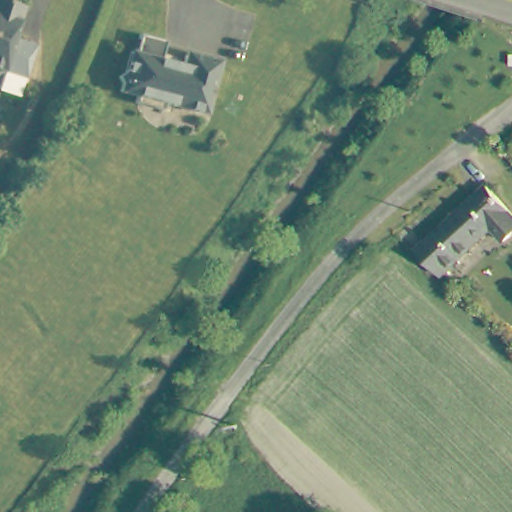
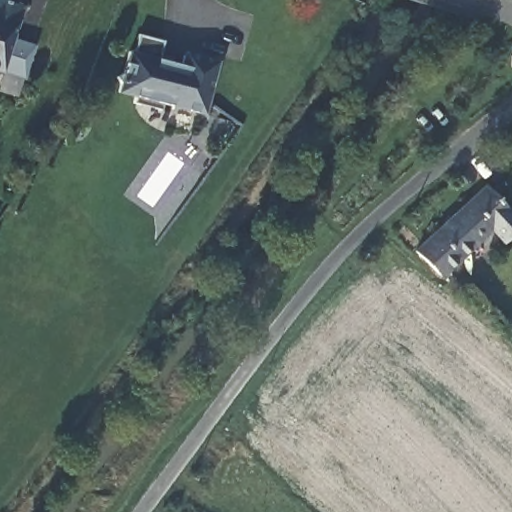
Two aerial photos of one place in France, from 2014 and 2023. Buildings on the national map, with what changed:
unchanged [(25,0),(16,26),(12,38),(34,44),(24,76),(3,71),(0,70),(0,0),(25,0)]
unchanged [(160,99),(157,106),(130,99),(131,93),(115,89),(118,80),(113,74),(120,69),(125,50),(129,51),(134,33),(160,40),(156,55),(177,61),(180,51),(214,60),(200,110),(160,99)]
unchanged [(512,231),(500,242),(487,230),(436,276),(412,251),(482,187),(512,220),(512,231)]

